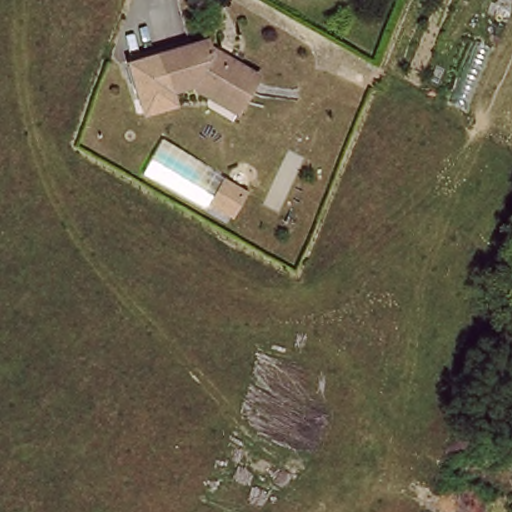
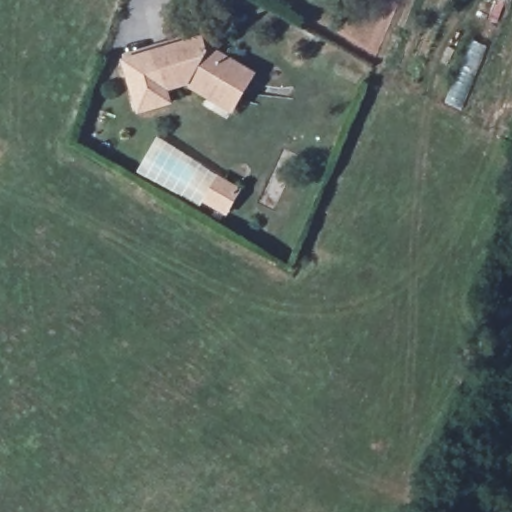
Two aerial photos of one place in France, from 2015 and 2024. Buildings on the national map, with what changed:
unchanged [(236,117),(193,92),(171,97),(175,112),(140,121),(128,66),(211,39),(222,59),(256,76),(236,117)]
unchanged [(233,219),(208,205),(219,180),(245,192),(233,219)]

